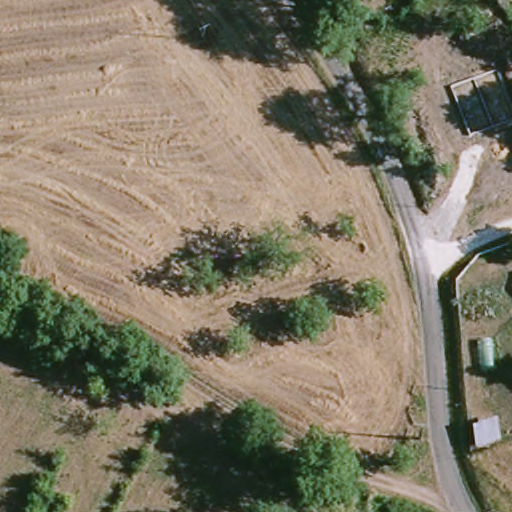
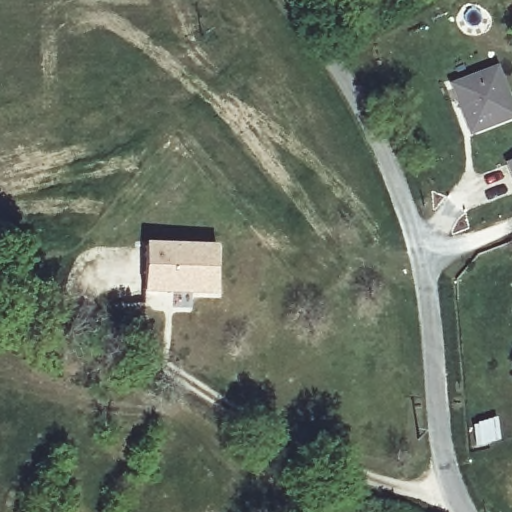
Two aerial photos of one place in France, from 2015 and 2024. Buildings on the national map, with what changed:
new [(512,119),(468,135),(449,84),(497,65),(512,101),(512,119)]
new [(512,184),(505,164),(512,161),(512,184)]
new [(217,244),(216,294),(143,294),(144,243),(217,244)]

